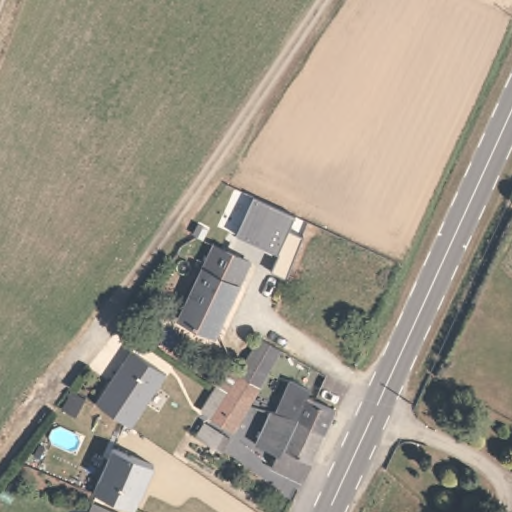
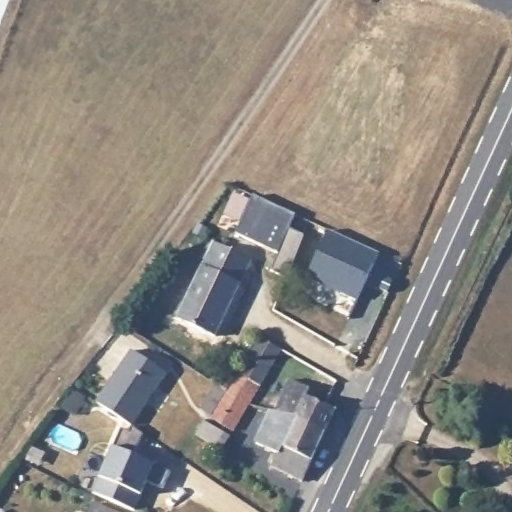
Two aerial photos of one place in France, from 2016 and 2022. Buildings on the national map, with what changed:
unchanged [(254,194),(295,213),(289,229),(302,234),(284,275),(269,269),(277,252),(236,232),(254,194)]
new [(357,301),(307,279),(328,230),(379,253),(357,301)]
unchanged [(214,244),(250,261),(215,335),(178,318),(214,244)]
unchanged [(223,355),(240,364),(260,332),(280,345),(249,398),(242,394),(216,378),(211,374),(223,355)]
unchanged [(129,348),(166,372),(130,425),(95,400),(129,348)]
unchanged [(242,394),(249,398),(233,425),(211,412),(212,410),(204,404),(201,402),(216,378),(242,394)]
unchanged [(283,398),(291,379),(310,389),(307,396),(335,410),(325,432),(311,426),(275,411),(283,398)]
unchanged [(275,411),(311,426),(325,432),(303,480),(271,467),(278,453),(255,442),(270,410),(275,411)]
unchanged [(204,415),(229,431),(221,446),(195,430),(204,415)]
unchanged [(115,448),(156,466),(136,512),(95,494),(115,448)]
unchanged [(112,512),(89,512),(92,503),(112,512)]

